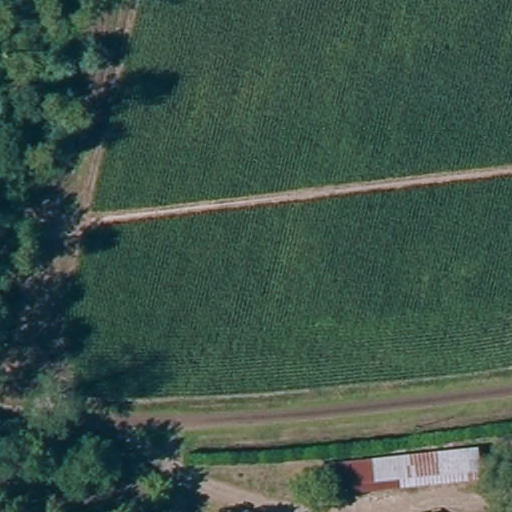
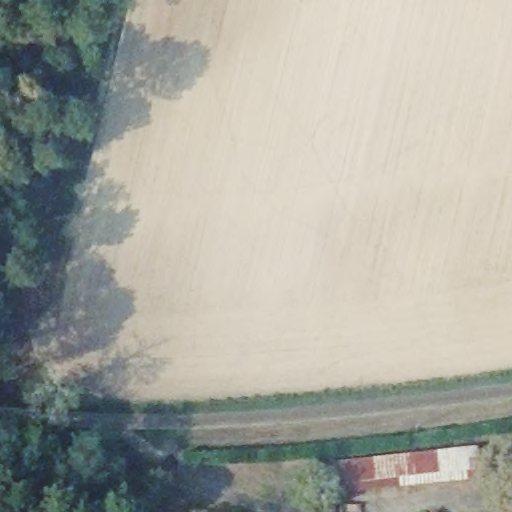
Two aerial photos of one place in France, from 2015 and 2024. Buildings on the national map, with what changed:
unchanged [(472,470),(343,484),(341,465),(470,451),(472,470)]
unchanged [(428,507),(436,512),(425,512),(428,507)]

